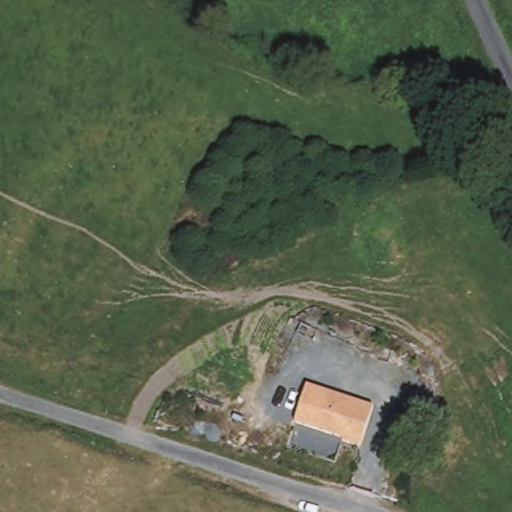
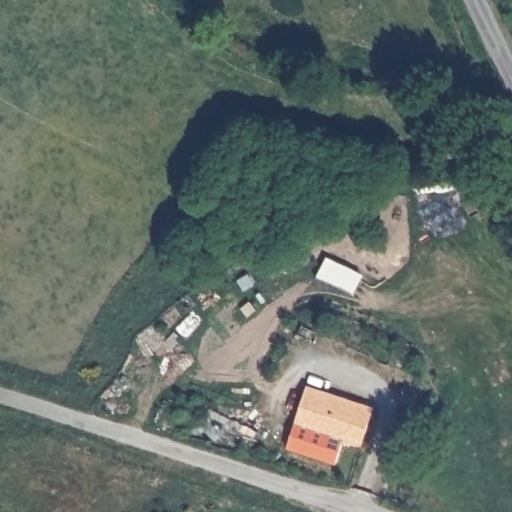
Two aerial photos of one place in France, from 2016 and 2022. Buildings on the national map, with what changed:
unchanged [(374,407),(362,443),(295,421),(306,384),(374,407)]

